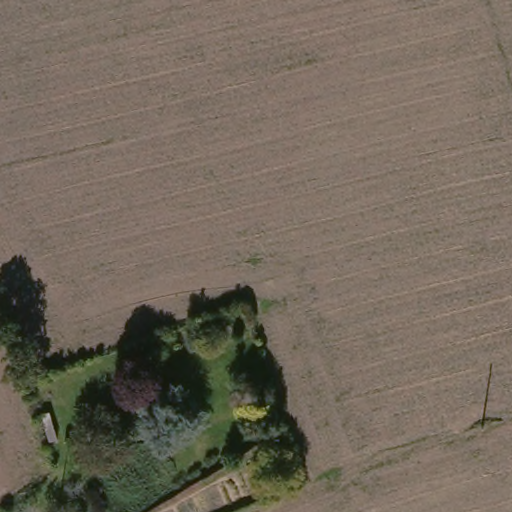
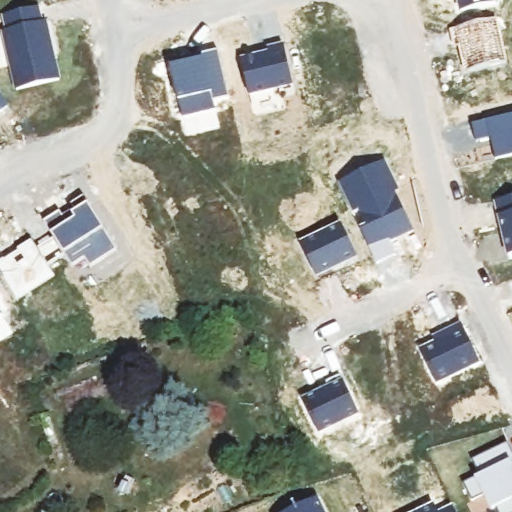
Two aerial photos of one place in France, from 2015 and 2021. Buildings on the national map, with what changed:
new [(38,6),(4,14),(0,0),(42,0),(43,5),(38,6)]
new [(461,11),(458,0),(495,0),(496,3),(461,11)]
new [(7,29),(4,14),(38,6),(41,21),(45,20),(59,80),(16,89),(3,30),(7,29)]
new [(496,19),(507,63),(468,71),(465,60),(463,60),(459,46),(454,46),(450,29),(496,19)]
new [(269,53),(268,49),(284,45),(293,84),(249,94),(241,60),(269,53)]
new [(190,56),(191,61),(203,59),(201,54),(218,50),(229,97),(213,101),(216,109),(183,116),(170,61),(190,56)]
new [(0,112),(0,95),(8,108),(0,112)]
new [(512,114),(512,155),(496,159),(491,137),(476,141),(472,124),(512,114)]
new [(385,160),(396,183),(383,189),(386,196),(395,192),(413,231),(389,242),(395,255),(377,264),(338,182),(385,160)]
new [(60,211),(67,223),(75,218),(71,214),(75,211),(71,204),(83,196),(116,249),(90,267),(84,258),(71,267),(64,255),(43,221),(60,211)]
new [(512,197),(512,254),(508,255),(495,201),(512,197)]
new [(341,224),(356,257),(316,276),(300,244),(341,224)]
new [(17,249),(31,239),(37,248),(53,238),(64,255),(48,265),(54,275),(16,300),(0,275),(0,262),(18,251),(17,249)]
new [(0,316),(0,313),(1,315),(0,316)]
new [(442,338),(440,333),(461,323),(480,363),(436,383),(420,348),(442,338)]
new [(384,350),(387,356),(401,350),(414,379),(369,400),(352,365),(384,350)]
new [(328,386),(326,381),(340,374),(359,414),(318,433),(302,398),(328,386)]
unchanged [(56,444),(49,447),(41,419),(50,416),(56,444)]
new [(479,475),(471,460),(507,442),(512,453),(512,512),(497,512),(495,507),(490,509),(484,495),(471,501),(462,483),(479,475)]
new [(316,497),(323,512),(285,512),(316,497)]
new [(433,505),(436,512),(418,512),(433,505)]
new [(452,506),(454,512),(439,512),(452,506)]

